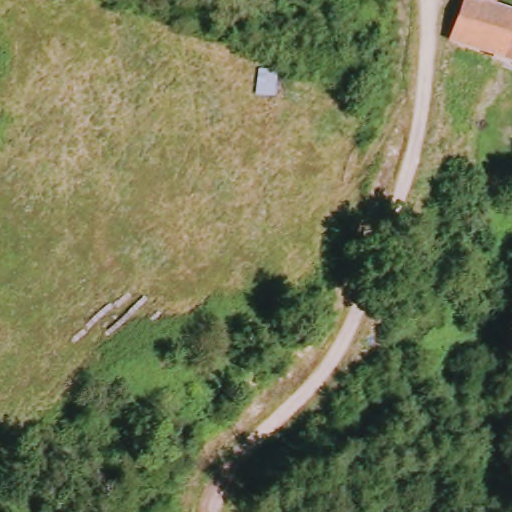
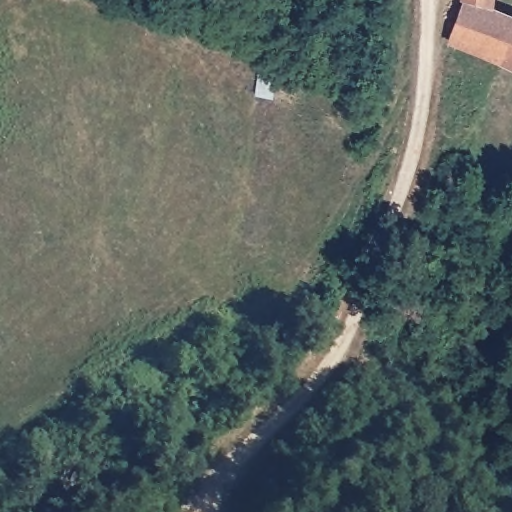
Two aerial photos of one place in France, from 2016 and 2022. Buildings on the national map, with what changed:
unchanged [(474,9),(475,0),(502,0),(502,11),(512,14),(512,61),(462,40),(474,9)]

